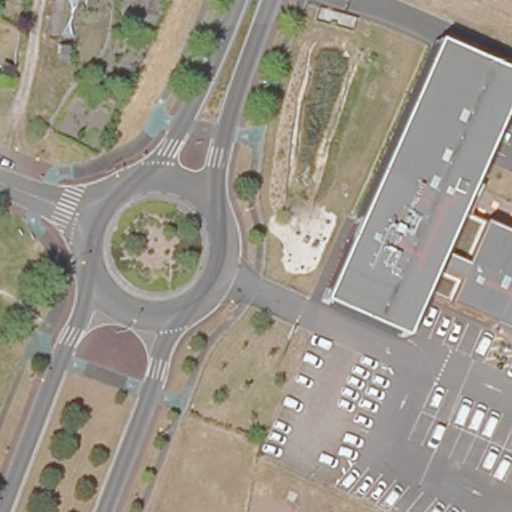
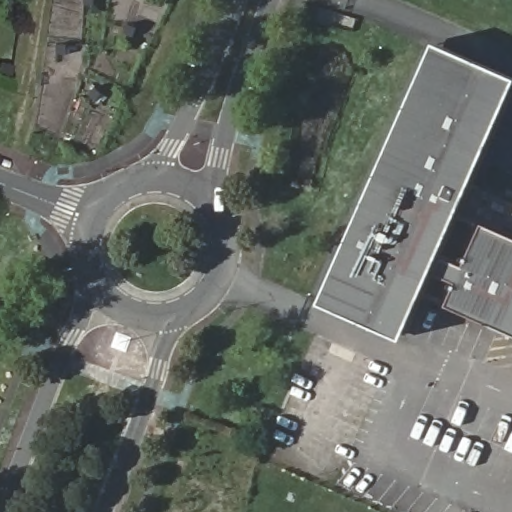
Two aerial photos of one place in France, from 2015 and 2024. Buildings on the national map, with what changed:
unchanged [(484,224),(512,235),(512,330),(450,303),(423,291),(402,339),(319,302),(435,43),(512,75),(512,92),(458,212),(484,224)]

